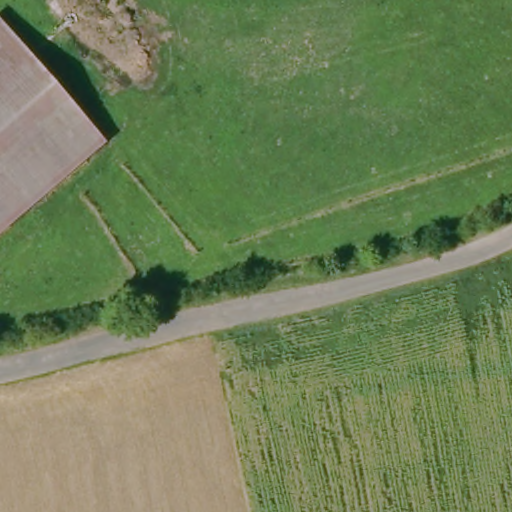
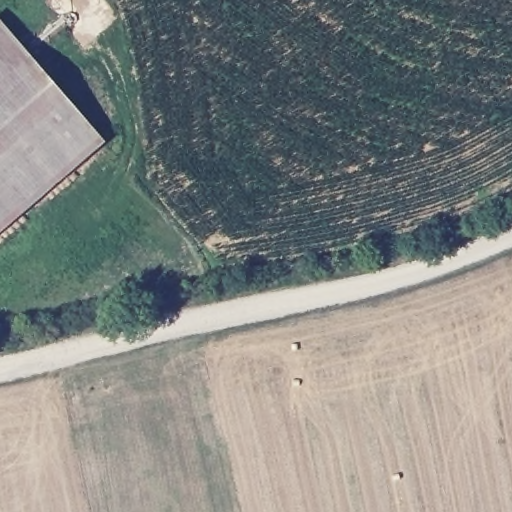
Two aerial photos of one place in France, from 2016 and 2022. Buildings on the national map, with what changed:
unchanged [(94,142),(0,221),(0,30),(94,142)]

